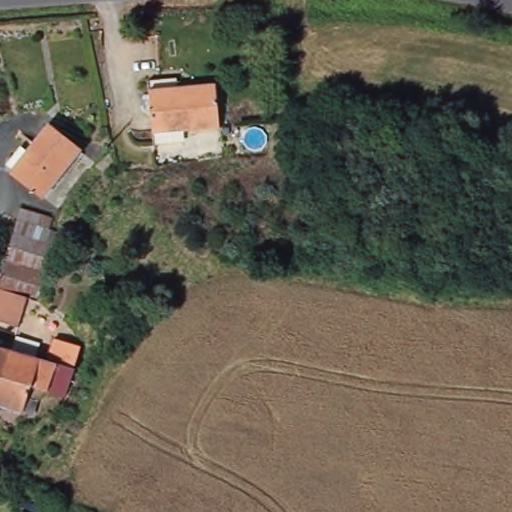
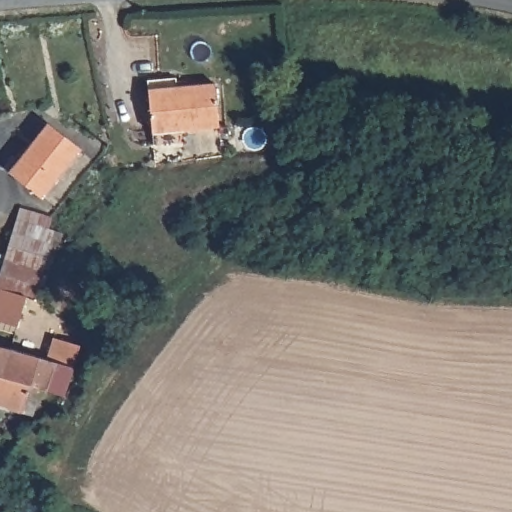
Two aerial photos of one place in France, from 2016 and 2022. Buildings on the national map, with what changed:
unchanged [(177,80),(178,90),(218,84),(226,126),(159,139),(149,85),(177,80)]
unchanged [(80,149),(44,198),(12,175),(48,125),(80,149)]
unchanged [(0,321),(0,270),(18,208),(62,219),(42,298),(24,294),(14,325),(0,321)]
unchanged [(0,406),(0,352),(7,355),(9,355),(22,358),(47,365),(53,340),(78,347),(65,397),(43,391),(37,415),(0,406)]

